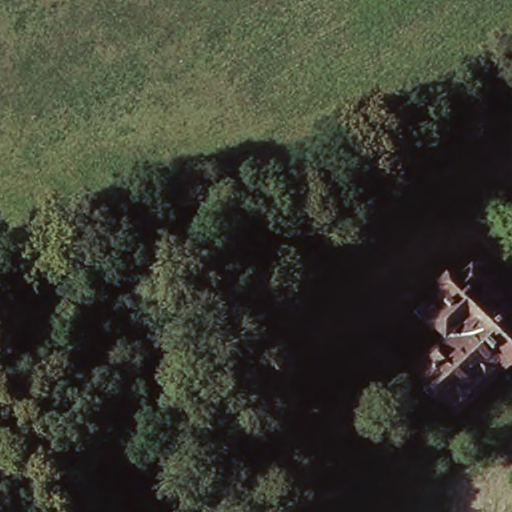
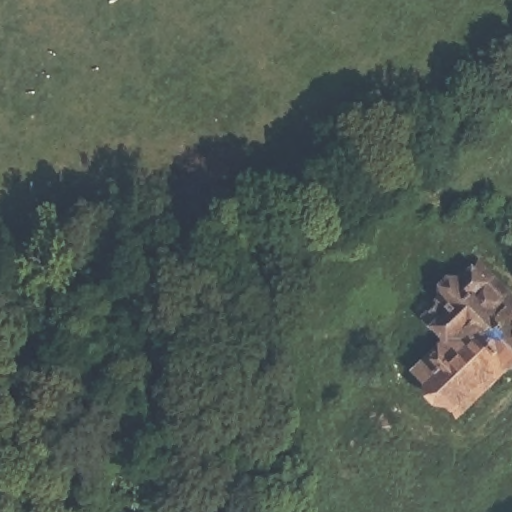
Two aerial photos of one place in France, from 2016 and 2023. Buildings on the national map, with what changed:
unchanged [(416,383),(445,354),(424,333),(444,314),(439,309),(461,289),(464,293),(481,277),(512,309),(512,333),(508,337),(512,342),(512,378),(504,386),(496,378),(453,421),(416,383)]

